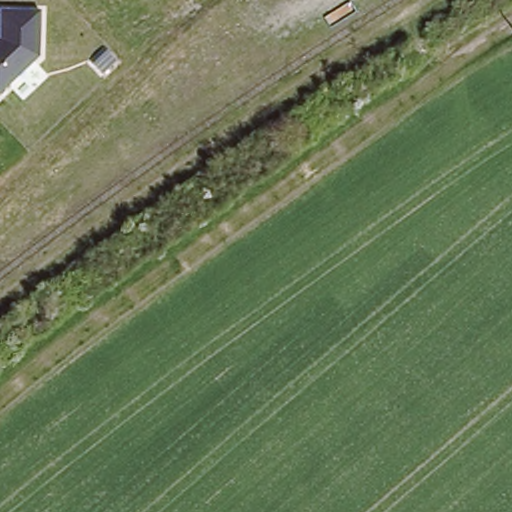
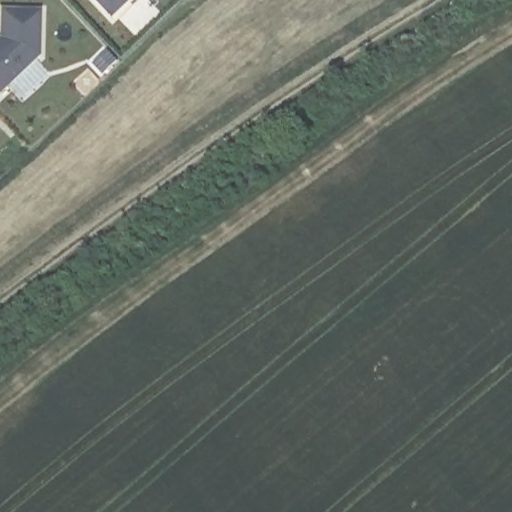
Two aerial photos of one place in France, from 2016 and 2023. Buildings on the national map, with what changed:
new [(134,0),(114,18),(97,0),(134,0)]
unchanged [(42,10),(40,58),(0,94),(0,37),(1,8),(42,10)]

